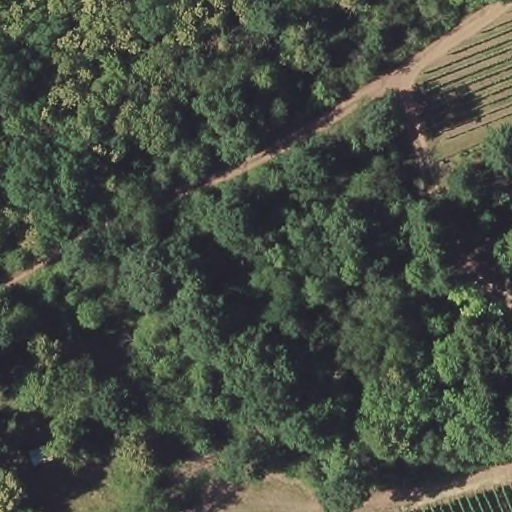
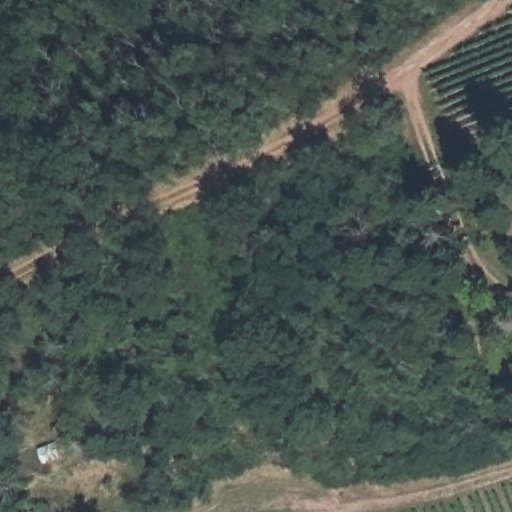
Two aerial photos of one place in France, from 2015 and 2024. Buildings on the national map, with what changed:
unchanged [(66,457),(49,467),(38,450),(60,441),(66,457)]

